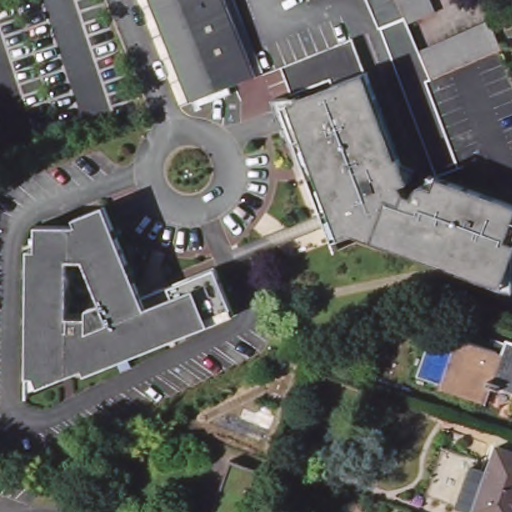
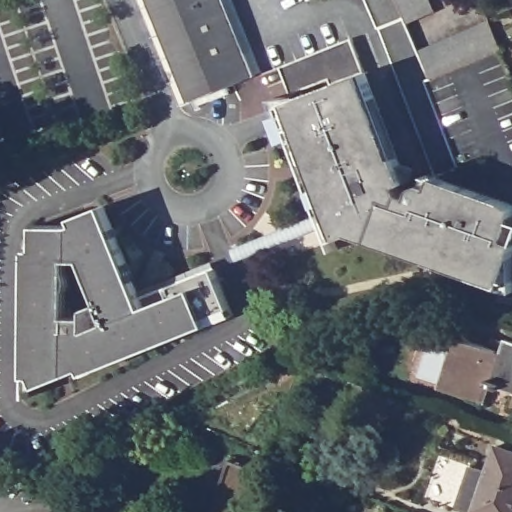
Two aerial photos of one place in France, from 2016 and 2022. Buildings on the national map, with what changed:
unchanged [(263,71),(239,81),(241,87),(221,93),(220,89),(205,96),(188,101),(182,86),(181,85),(147,0),(241,0),(268,69),(263,71)]
unchanged [(375,28),(363,0),(396,0),(403,17),(375,28)]
unchanged [(407,27),(405,22),(403,17),(396,0),(428,0),(434,16),(407,27)]
unchanged [(403,17),(405,22),(407,27),(420,54),(422,60),(431,80),(451,126),(469,166),(444,177),(380,31),(377,32),(375,28),(403,17)]
unchanged [(490,23),(501,50),(498,51),(431,80),(422,60),(420,54),(490,23)]
unchanged [(334,78),(298,93),(290,75),(285,64),(346,40),(355,36),(359,48),(415,184),(410,186),(410,192),(420,195),(423,188),(425,186),(428,184),(431,184),(435,184),(440,186),(444,177),(466,186),(512,203),(512,214),(503,238),(512,242),(512,253),(502,280),(364,227),(361,235),(338,226),(341,218),(310,144),(303,146),(286,108),(337,86),(334,78)]
unchanged [(27,250),(33,250),(36,226),(75,228),(80,226),(77,220),(108,207),(135,273),(130,275),(139,299),(217,268),(235,313),(194,332),(87,373),(75,362),(55,366),(54,380),(34,388),(20,393),(21,382),(27,250)]
unchanged [(465,342),(498,353),(502,343),(512,346),(512,395),(487,386),(481,402),(447,389),(465,342)]
unchanged [(510,406),(512,401),(512,406),(510,406)]
unchanged [(462,486),(480,493),(497,448),(512,453),(512,512),(473,512),(455,505),(462,486)]
unchanged [(229,464),(267,478),(255,512),(211,512),(229,464)]

